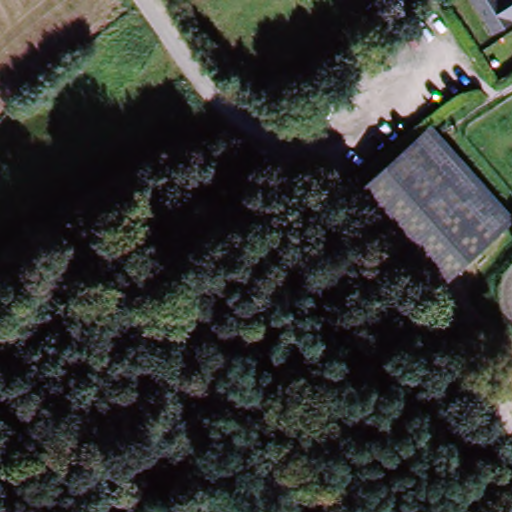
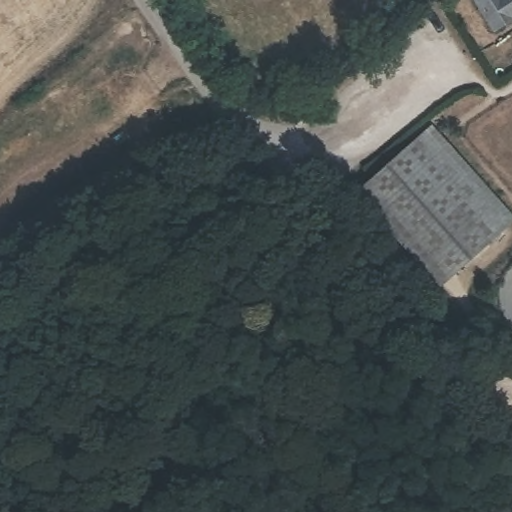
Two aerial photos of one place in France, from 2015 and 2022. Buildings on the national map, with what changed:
unchanged [(468,0),(512,0),(512,22),(491,35),(468,0)]
unchanged [(432,137),(509,224),(449,278),(371,191),(432,137)]

